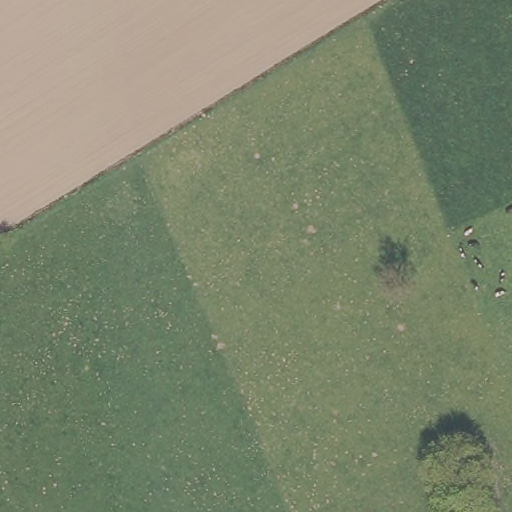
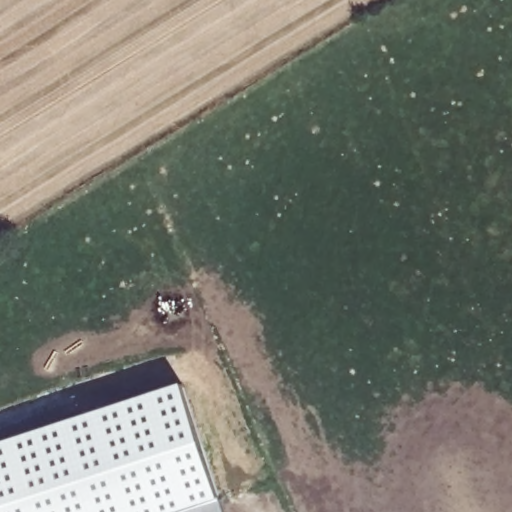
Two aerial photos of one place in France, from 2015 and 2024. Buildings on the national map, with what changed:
new [(0,442),(181,383),(220,502),(189,512),(0,512),(0,442)]
new [(220,502),(223,512),(189,512),(220,502)]

